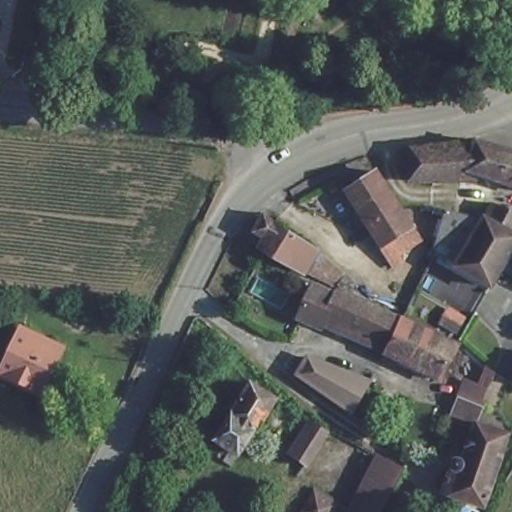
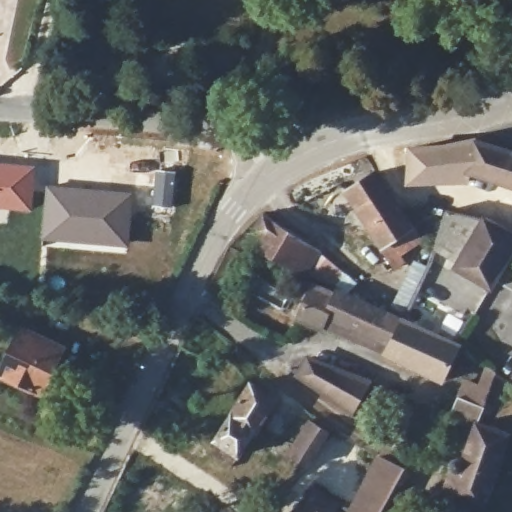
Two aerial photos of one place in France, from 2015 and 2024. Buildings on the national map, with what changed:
unchanged [(478,169),(477,179),(460,174),(408,176),(411,142),(446,141),(474,135),(512,146),(512,181),(478,169)]
new [(32,212),(0,209),(0,162),(37,166),(32,212)]
new [(155,170),(177,172),(173,207),(151,204),(155,170)]
unchanged [(380,243),(347,190),(375,171),(409,226),(380,243)]
new [(46,184),(135,192),(128,249),(42,241),(46,184)]
unchanged [(487,215),(495,201),(512,208),(512,256),(506,266),(494,286),(458,265),(462,258),(485,219),(487,215)]
unchanged [(462,258),(439,244),(449,210),(485,219),(462,258)]
unchanged [(330,285),(311,270),(317,262),(311,257),(303,271),(280,262),(261,250),(267,239),(252,230),(261,212),(304,239),(322,255),(343,274),(330,285)]
unchanged [(440,378),(386,352),(389,346),(324,316),(319,328),(298,318),(313,285),(332,291),(335,288),(363,305),(376,308),(456,345),(440,378)]
unchanged [(40,392),(0,374),(0,370),(19,329),(61,348),(40,392)]
unchanged [(307,356),(367,381),(350,410),(323,390),(299,375),(297,373),(307,356)]
unchanged [(492,371),(494,372),(485,395),(477,391),(487,365),(492,371)]
unchanged [(275,399),(254,432),(251,430),(235,453),(213,438),(250,381),(275,399)]
unchanged [(486,512),(447,496),(456,476),(455,472),(455,467),(458,464),(462,463),(465,463),(478,431),(453,421),(461,401),(485,411),(480,425),(512,438),(512,439),(487,512),(486,512)]
unchanged [(326,430),(305,464),(287,452),(308,419),(325,430),(326,430)]
unchanged [(392,486),(379,511),(378,512),(350,512),(347,510),(376,457),(402,468),(392,486)]
unchanged [(325,512),(304,512),(308,505),(313,496),(330,505),(325,512)]

